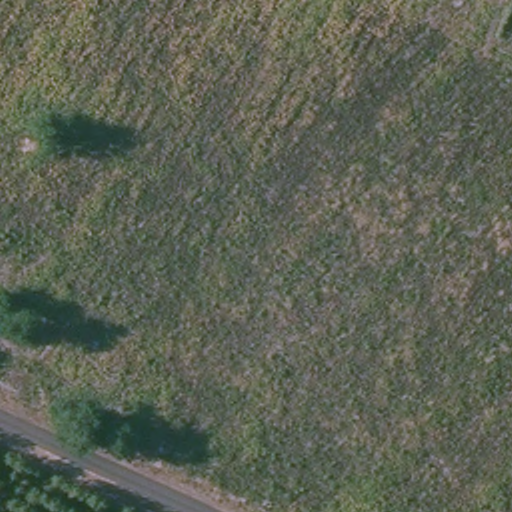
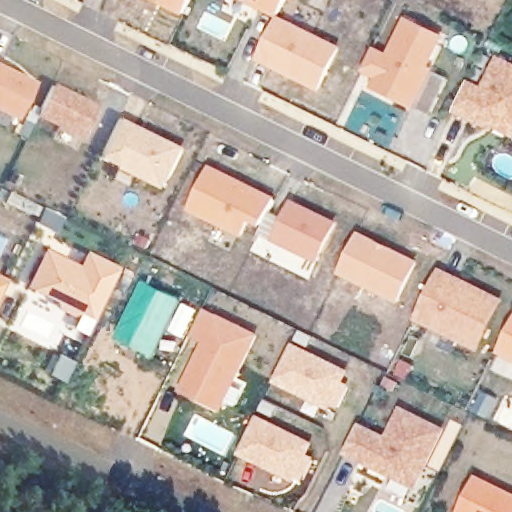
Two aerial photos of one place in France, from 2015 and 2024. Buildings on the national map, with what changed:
new [(185,15),(152,0),(193,0),(185,15)]
new [(281,17),(242,0),(289,0),(281,17)]
new [(281,17),(343,49),(322,91),(258,62),(281,17)]
new [(377,78),(365,72),(377,50),(390,55),(407,20),(446,37),(431,69),(437,71),(417,109),(373,89),(377,78)]
new [(485,89),(500,59),(512,64),(512,136),(496,129),(494,132),(456,112),(470,82),(485,89)]
new [(0,109),(0,64),(37,83),(19,118),(0,109)]
new [(55,84),(100,105),(84,139),(38,117),(55,84)]
new [(102,157),(122,116),(187,150),(167,189),(102,157)]
new [(191,211),(212,167),(277,199),(262,226),(253,221),(244,238),(191,211)]
new [(275,242),(294,202),(340,225),(320,265),(275,242)]
new [(360,234),(421,262),(400,305),(340,275),(360,234)]
new [(82,310),(74,313),(64,308),(60,299),(32,285),(47,255),(74,266),(72,271),(81,275),(89,257),(118,272),(95,317),(82,310)]
new [(417,320),(442,270),(506,301),(482,353),(417,320)]
new [(7,280),(0,295),(0,277),(7,280)]
new [(154,357),(116,340),(144,281),(181,300),(154,357)]
new [(182,393),(207,343),(194,337),(206,310),(220,316),(261,336),(224,412),(182,393)]
new [(512,361),(500,355),(512,329),(512,361)]
new [(276,384),(295,345),(350,372),(346,382),(351,385),(340,408),(333,405),(331,410),(276,384)]
new [(347,455),(362,425),(389,437),(402,408),(447,430),(417,490),(347,455)]
new [(241,455),(260,417),(315,444),(311,455),(317,459),(305,482),(298,479),(297,483),(241,455)]
new [(512,494),(512,512),(461,512),(478,477),(512,494)]

